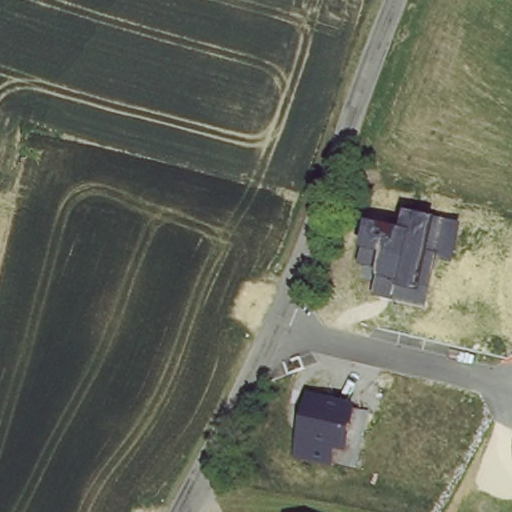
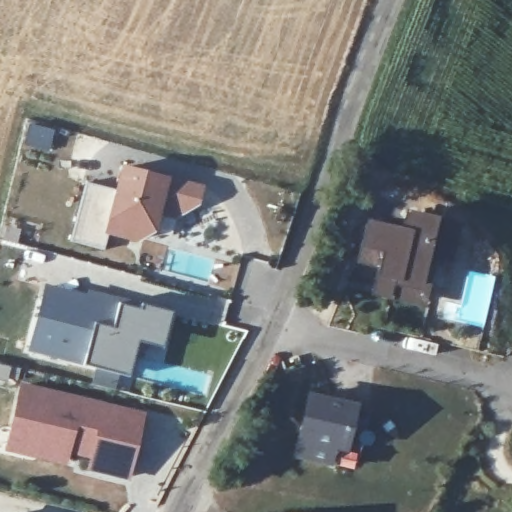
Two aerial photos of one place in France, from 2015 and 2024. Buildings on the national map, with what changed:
new [(70,241),(86,182),(115,189),(120,165),(169,176),(204,185),(199,204),(175,219),(160,215),(155,231),(136,242),(107,235),(103,249),(70,241)]
unchanged [(452,261),(435,258),(425,305),(371,294),(379,267),(358,262),(366,221),(401,228),(405,210),(461,223),(452,261)]
new [(26,351),(44,284),(85,294),(86,290),(140,303),(171,312),(163,348),(136,342),(128,375),(82,365),(26,351)]
new [(3,451),(20,382),(145,412),(129,480),(86,472),(90,459),(68,454),(65,464),(3,451)]
unchanged [(356,404),(355,408),(366,410),(354,467),(331,461),(330,465),(294,456),(307,392),(356,404)]

